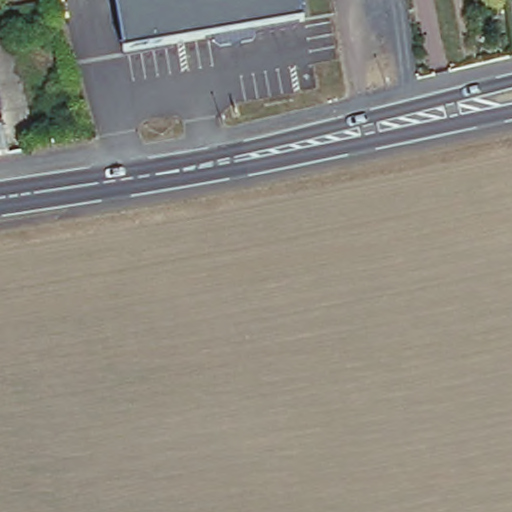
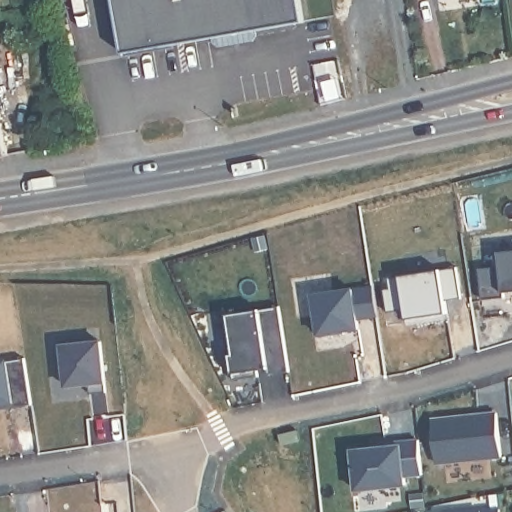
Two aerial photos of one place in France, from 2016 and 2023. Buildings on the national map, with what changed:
unchanged [(301,20),(127,50),(118,0),(297,0),(301,20)]
demolished [(408,26),(377,30),(373,0),(404,0),(408,26)]
unchanged [(5,118),(13,160),(0,162),(0,113),(2,119),(5,118)]
new [(512,255),(512,296),(500,297),(500,303),(478,305),(475,273),(496,271),(494,257),(512,255)]
new [(402,330),(402,324),(400,314),(382,317),(379,293),(385,292),(383,282),(452,271),(457,302),(441,305),(442,317),(443,324),(402,330)]
new [(314,295),(370,287),(374,316),(353,318),(356,332),(318,337),(314,295)]
new [(231,355),(234,355),(227,315),(282,307),(291,372),(234,379),(231,355)]
new [(101,337),(105,385),(60,387),(56,342),(101,337)]
new [(7,358),(26,357),(32,401),(0,406),(0,355),(7,353),(7,358)]
new [(498,414),(501,455),(437,460),(433,420),(498,414)]
new [(355,452),(381,450),(381,445),(402,444),(402,440),(418,437),(422,475),(405,478),(406,487),(358,491),(355,452)]
new [(506,512),(480,512),(506,510),(506,512)]

